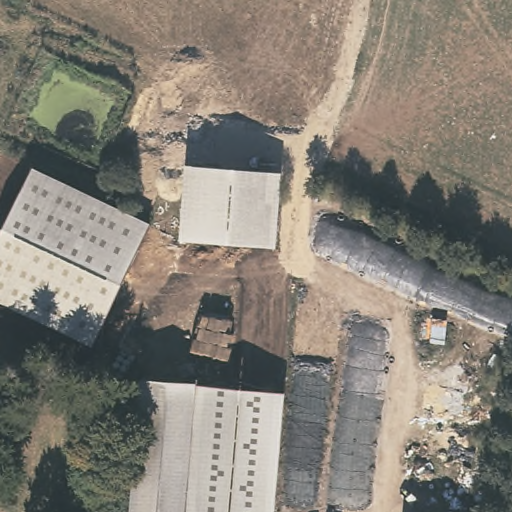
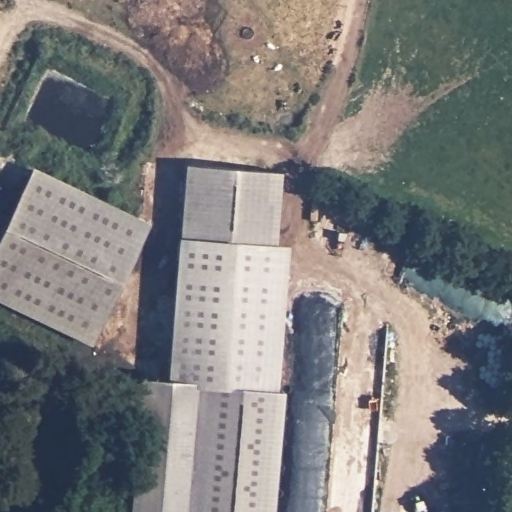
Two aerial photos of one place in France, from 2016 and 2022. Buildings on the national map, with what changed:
unchanged [(185,163),(282,172),(275,248),(179,240),(185,163)]
unchanged [(96,342),(0,296),(0,242),(36,167),(153,224),(96,342)]
new [(179,240),(275,248),(288,249),(279,390),(166,381),(179,240)]
unchanged [(279,390),(270,512),(133,512),(141,403),(142,400),(144,380),(279,390)]

